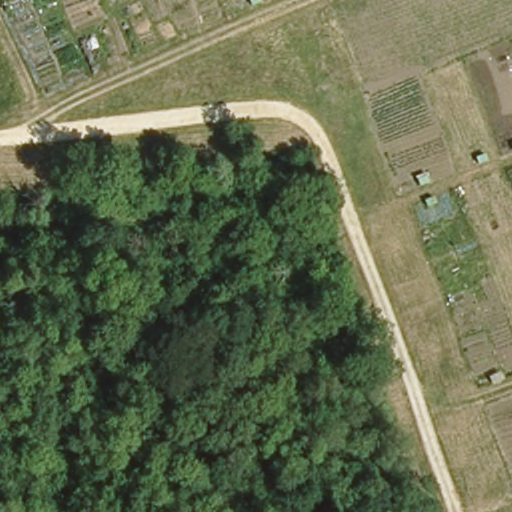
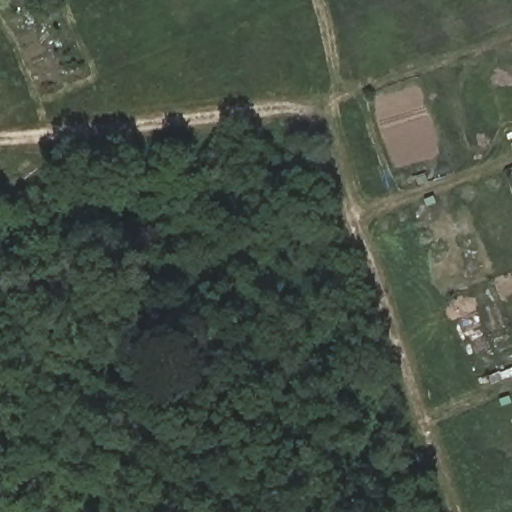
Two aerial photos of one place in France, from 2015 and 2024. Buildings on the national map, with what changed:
[]

